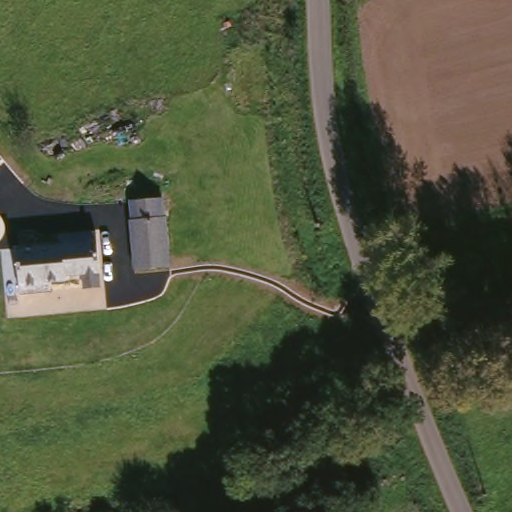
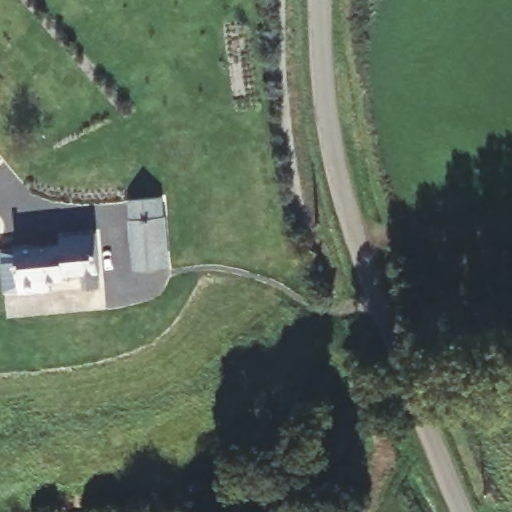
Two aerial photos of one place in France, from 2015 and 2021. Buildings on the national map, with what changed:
unchanged [(130,204),(163,200),(173,263),(136,266),(130,204)]
unchanged [(89,283),(88,275),(49,277),(50,285),(25,287),(22,244),(66,241),(67,231),(103,228),(106,273),(106,282),(89,283)]

